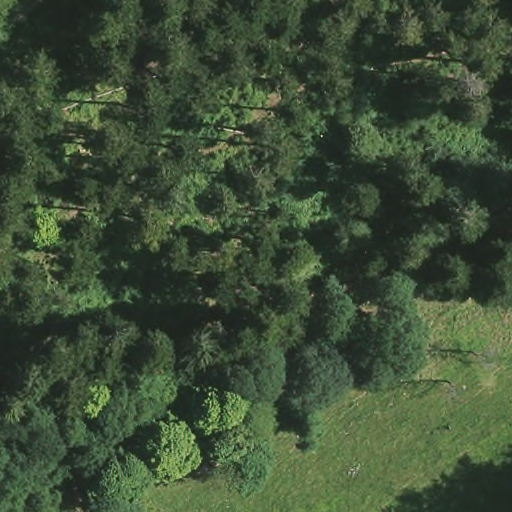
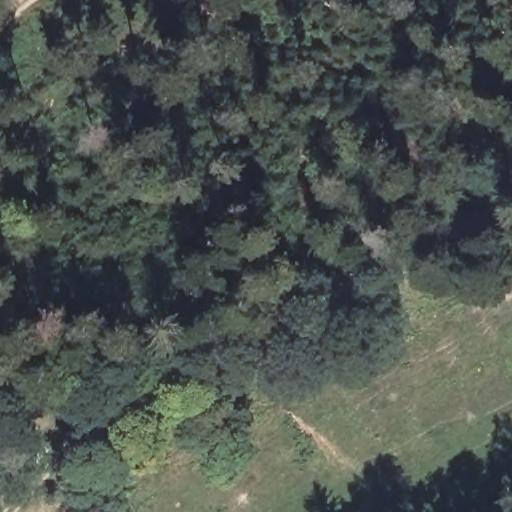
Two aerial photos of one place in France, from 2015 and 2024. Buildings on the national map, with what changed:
[]

